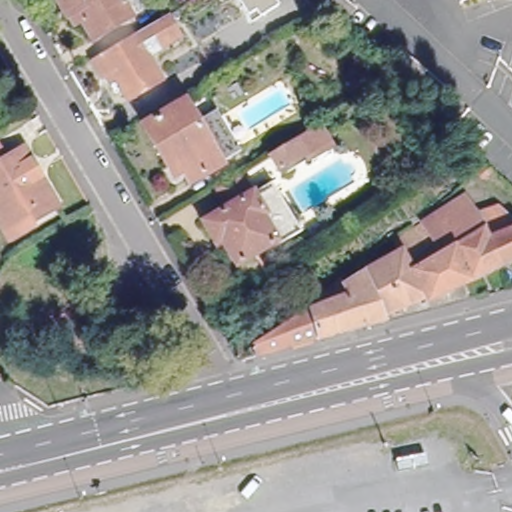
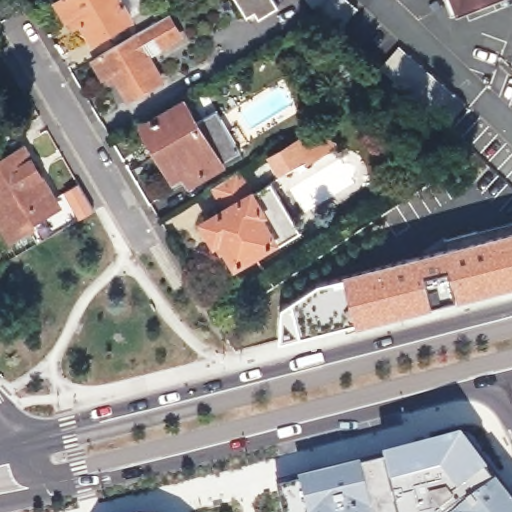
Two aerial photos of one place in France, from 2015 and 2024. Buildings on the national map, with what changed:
unchanged [(89,43),(73,15),(66,19),(56,0),(57,0),(136,0),(140,9),(128,17),(129,19),(89,43)]
unchanged [(277,3),(250,20),(237,0),(275,0),(277,3)]
unchanged [(345,18),(323,0),(361,0),(345,18)]
unchanged [(461,1),(460,0),(465,0),(461,1)]
unchanged [(105,73),(95,55),(169,10),(181,31),(161,43),(149,50),(162,76),(130,95),(118,75),(110,80),(105,73)]
unchanged [(446,107),(394,58),(408,45),(461,91),(446,107)]
unchanged [(379,82),(357,95),(346,79),(370,65),(379,82)]
unchanged [(181,127),(201,114),(226,156),(175,187),(165,167),(155,172),(130,131),(170,108),(181,127)]
unchanged [(108,137),(100,124),(120,114),(126,127),(108,137)]
unchanged [(328,147),(300,163),(290,146),(317,130),(328,147)]
unchanged [(23,155),(49,197),(22,214),(32,232),(11,245),(0,227),(0,159),(4,165),(23,155)]
unchanged [(263,212),(260,214),(275,240),(237,263),(221,238),(215,240),(204,222),(252,192),(263,212)]
unchanged [(429,303),(425,297),(401,253),(396,245),(464,199),(492,236),(496,234),(485,217),(505,212),(512,218),(512,266),(429,303)]
unchanged [(254,349),(321,306),(318,301),(342,280),(346,287),(362,276),(401,253),(425,297),(383,315),(385,320),(366,326),(291,348),(257,357),(254,349)]
new [(362,469),(388,461),(464,444),(512,506),(512,512),(285,512),(280,490),(303,483),(362,469)]

